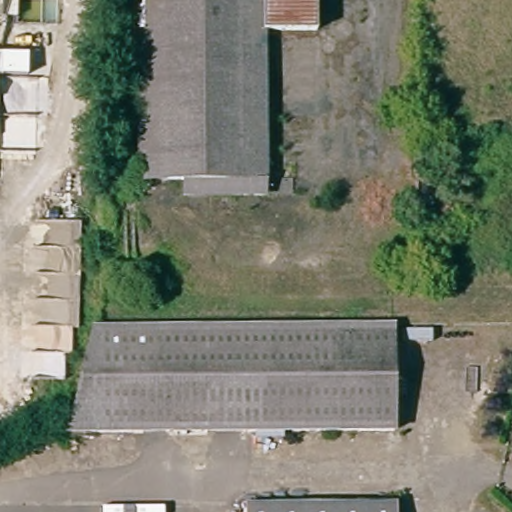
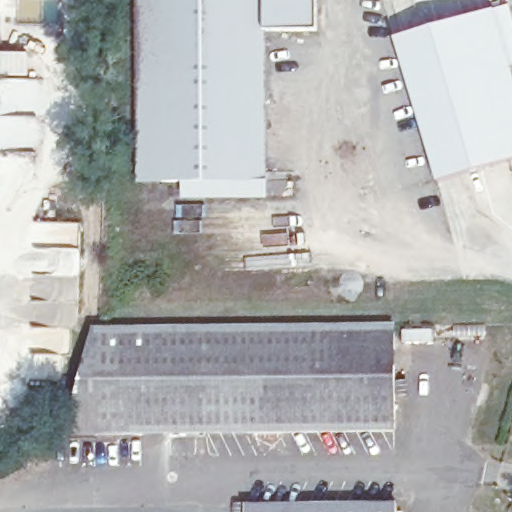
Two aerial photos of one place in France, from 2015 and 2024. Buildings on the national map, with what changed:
unchanged [(171,0),(172,27),(145,27),(144,0),(171,0)]
unchanged [(272,24),(246,25),(253,171),(149,177),(145,27),(172,27),(171,0),(321,0),(322,22),(272,24)]
new [(512,16),(512,65),(510,66),(512,75),(512,160),(437,184),(394,39),(509,5),(512,16)]
unchanged [(272,24),(274,170),(253,171),(246,25),(272,24)]
new [(29,54),(29,76),(0,75),(0,53),(29,54)]
new [(181,201),(179,175),(252,171),(267,170),(268,199),(181,201)]
unchanged [(393,318),(395,421),(75,428),(72,428),(81,412),(92,325),(393,318)]
unchanged [(245,504),(395,502),(395,512),(245,512),(245,504)]

